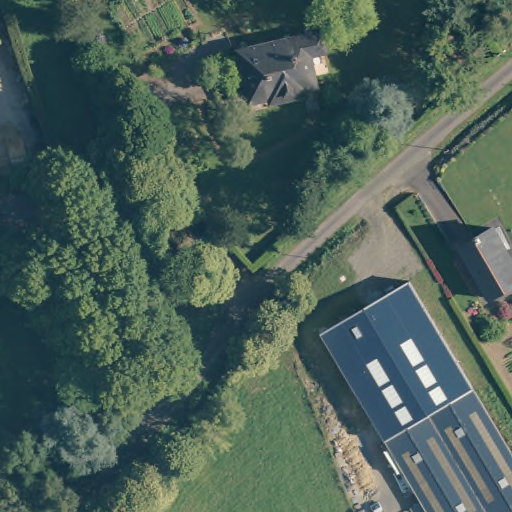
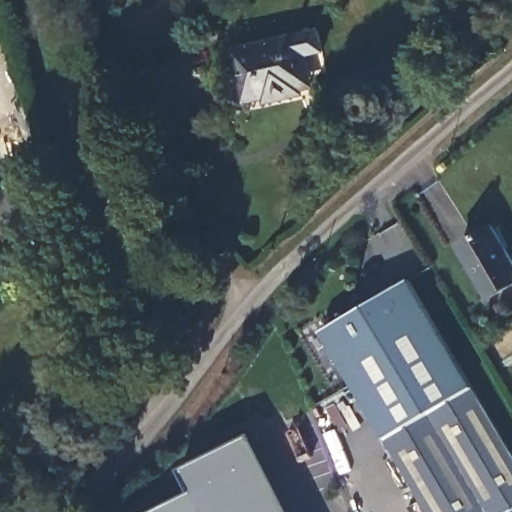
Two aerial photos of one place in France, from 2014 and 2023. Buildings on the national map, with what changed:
unchanged [(297,100),(262,108),(261,104),(240,108),(229,59),(312,41),(315,59),(300,61),(303,78),(303,80),(307,98),(297,100)]
unchanged [(470,242),(502,224),(512,240),(512,286),(498,294),(470,242)]
unchanged [(0,287),(0,279),(2,287),(0,287)]
unchanged [(323,333),(408,284),(471,389),(385,438),(323,333)]
unchanged [(512,458),(512,511),(510,512),(428,512),(385,438),(471,389),(512,458)]
new [(293,512),(155,512),(195,493),(183,470),(253,434),(293,512)]

